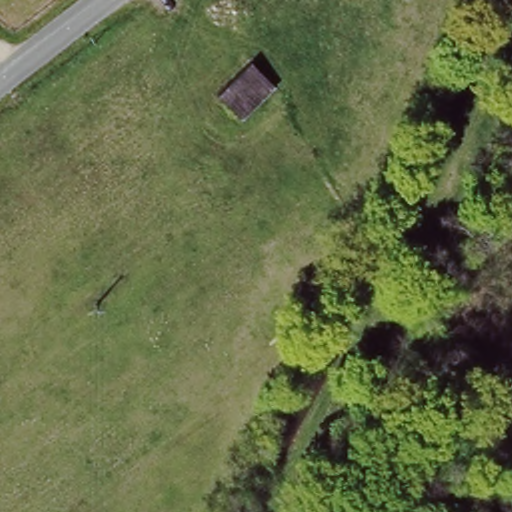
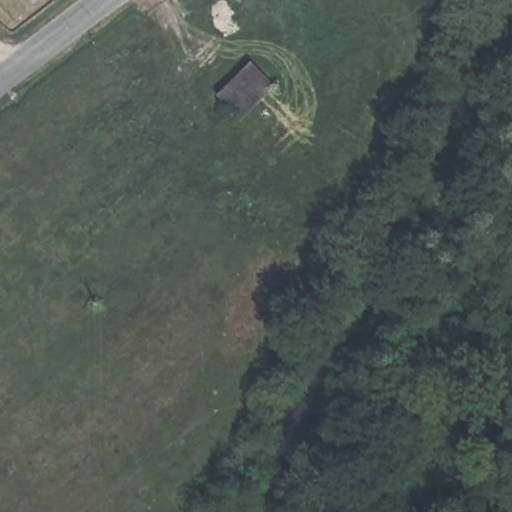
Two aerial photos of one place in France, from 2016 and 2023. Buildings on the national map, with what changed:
unchanged [(257,64),(279,85),(247,118),(225,95),(257,64)]

